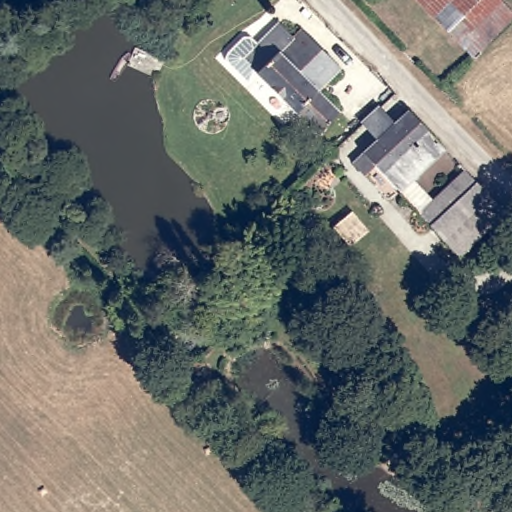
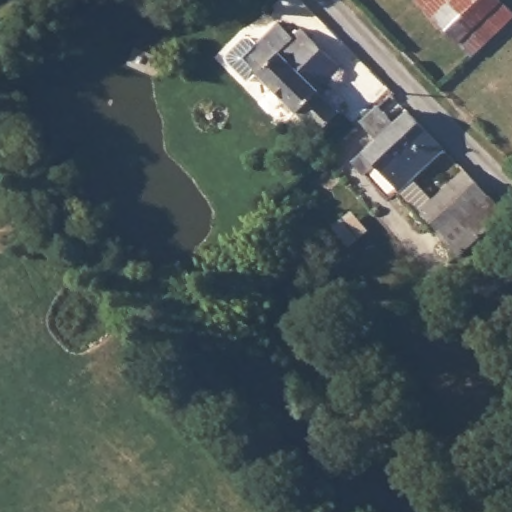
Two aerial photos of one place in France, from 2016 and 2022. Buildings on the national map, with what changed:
unchanged [(421,0),(479,0),(450,28),(421,0)]
unchanged [(512,14),(475,53),(450,28),(479,0),(509,0),(512,4),(512,14)]
unchanged [(319,95),(338,117),(314,139),(254,76),(240,61),(276,27),(290,42),(300,33),(340,75),(319,95)]
unchanged [(365,127),(382,110),(398,128),(416,111),(436,131),(386,178),(380,172),(367,183),(355,169),(380,145),(365,127)]
unchanged [(448,153),(401,196),(386,178),(436,131),(447,143),(448,153)]
unchanged [(465,167),(508,211),(461,255),(420,212),(465,167)]

